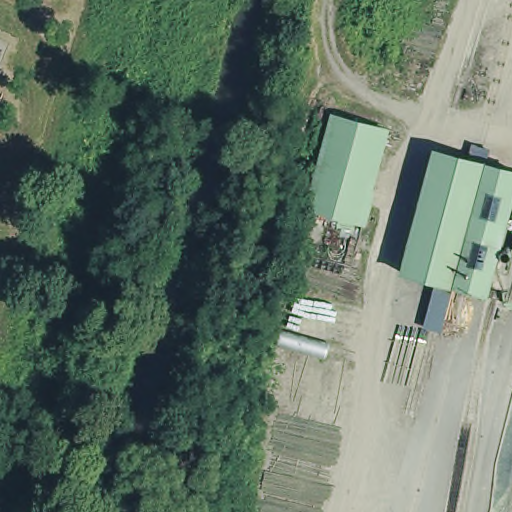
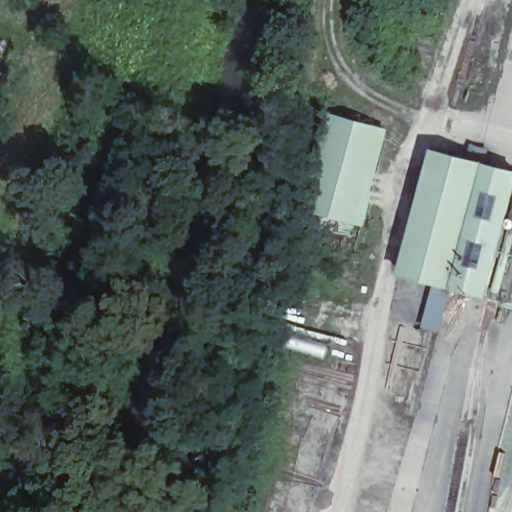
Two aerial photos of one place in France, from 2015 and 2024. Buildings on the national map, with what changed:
unchanged [(333,113),(377,125),(354,215),(310,202),(333,113)]
unchanged [(450,305),(430,375),(415,370),(437,291),(441,276),(407,267),(440,145),(474,154),(477,140),(492,144),(488,158),(512,165),(512,206),(489,289),(467,283),(463,297),(460,307),(450,305)]

